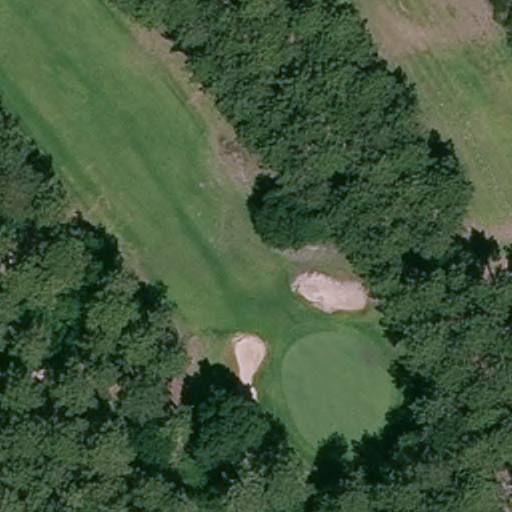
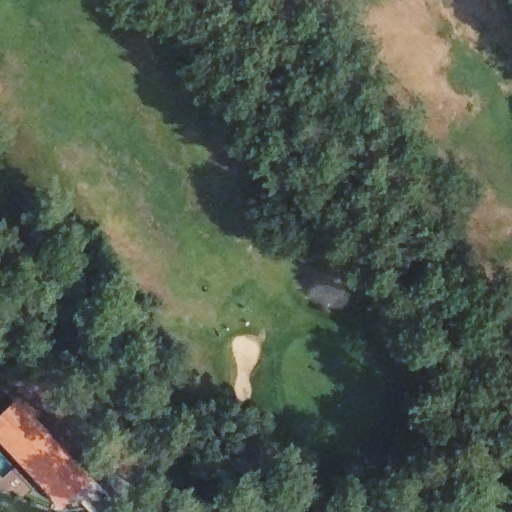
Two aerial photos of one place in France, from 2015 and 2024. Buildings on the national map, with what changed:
new [(94,480),(60,508),(0,443),(0,415),(16,400),(94,480)]

